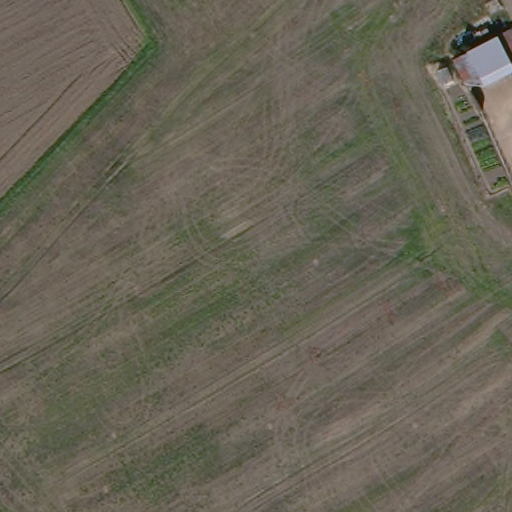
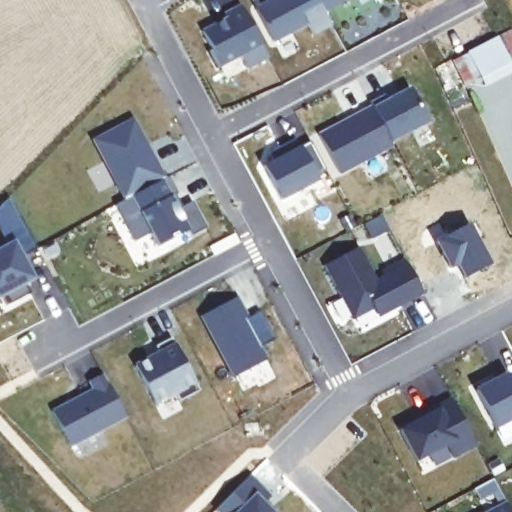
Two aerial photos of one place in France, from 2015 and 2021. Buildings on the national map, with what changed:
new [(318,0),(332,25),(312,35),(307,25),(273,41),(257,11),(275,0),(318,0)]
new [(323,0),(338,0),(326,6),(323,0)]
unchanged [(512,68),(512,73),(469,95),(447,61),(497,36),(512,68)]
new [(390,90),(393,96),(416,84),(433,117),(396,137),(377,102),(375,98),(390,90)]
new [(377,102),(396,137),(397,141),(344,168),(324,130),(377,102)]
new [(149,144),(159,163),(167,178),(126,199),(96,139),(136,118),(149,144)]
new [(325,173),(316,177),(318,183),(282,202),(262,166),(272,161),(269,156),(297,141),(301,147),(308,143),(325,173)]
new [(167,178),(171,176),(180,193),(177,194),(184,206),(195,200),(209,227),(189,238),(186,232),(160,246),(152,232),(136,241),(116,204),(126,199),(167,178)]
new [(9,197),(38,250),(27,260),(38,282),(0,303),(0,245),(8,242),(0,226),(0,206),(9,197)]
new [(361,247),(377,279),(407,264),(425,294),(380,317),(376,310),(354,321),(324,267),(361,247)]
new [(276,340),(262,348),(269,362),(234,380),(200,316),(238,297),(249,318),(261,313),(276,340)]
new [(136,366),(159,354),(156,347),(172,339),(200,390),(180,400),(176,393),(156,402),(136,366)]
new [(103,374),(127,418),(70,448),(50,412),(92,389),(89,381),(103,374)]
new [(512,383),(512,420),(496,429),(477,392),(507,375),(512,383)]
new [(478,447),(455,460),(447,445),(416,461),(397,429),(439,406),(451,400),(478,447)]
new [(267,485),(276,494),(269,500),(281,512),(226,512),(221,506),(255,473),(267,485)]
new [(511,512),(490,512),(506,503),(511,512)]

